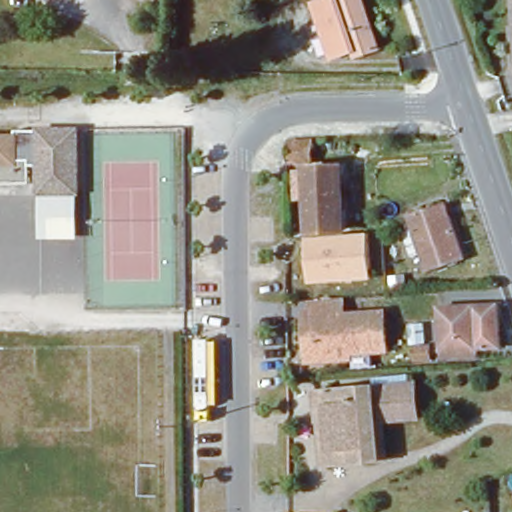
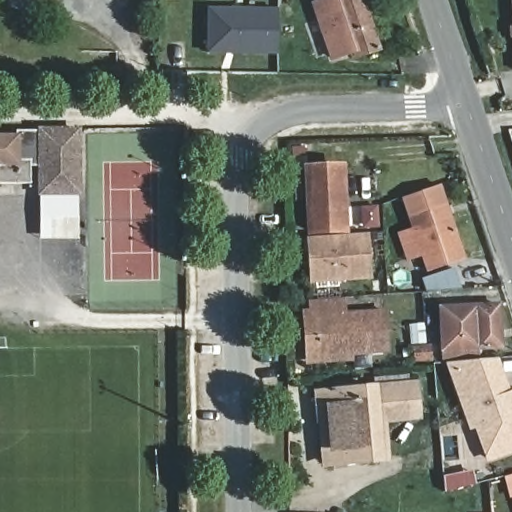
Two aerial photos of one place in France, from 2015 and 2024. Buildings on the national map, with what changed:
unchanged [(354,56),(333,64),(314,11),(328,5),(325,0),(360,0),(379,56),(357,62),(354,56)]
demolished [(508,0),(512,0),(512,54),(508,0)]
new [(206,53),(207,8),(277,8),(277,54),(206,53)]
unchanged [(79,194),(40,194),(40,168),(31,168),(30,185),(0,185),(0,138),(15,138),(15,131),(77,130),(79,194)]
unchanged [(296,169),(295,149),(314,148),(316,168),(296,169)]
unchanged [(316,237),(314,197),(303,197),(302,183),(314,182),(314,174),(345,173),(347,235),(316,237)]
unchanged [(79,194),(80,238),(40,238),(40,194),(79,194)]
unchanged [(369,232),(372,279),(308,283),(305,235),(303,197),(314,197),(316,237),(347,235),(369,232)]
unchanged [(399,233),(409,230),(404,217),(441,204),(460,261),(423,273),(417,255),(408,258),(399,233)]
unchanged [(343,298),(343,313),(384,312),(387,355),(318,357),(316,318),(311,317),(310,301),(343,298)]
unchanged [(437,352),(435,309),(494,306),(495,349),(437,352)]
unchanged [(408,363),(408,348),(426,346),(426,361),(408,363)]
new [(487,462),(474,430),(469,432),(443,363),(496,357),(508,392),(512,391),(512,454),(487,462)]
unchanged [(317,422),(324,421),(321,394),(410,385),(411,411),(370,416),(374,460),(321,465),(317,422)]
new [(509,498),(502,477),(512,474),(512,498),(509,498)]

